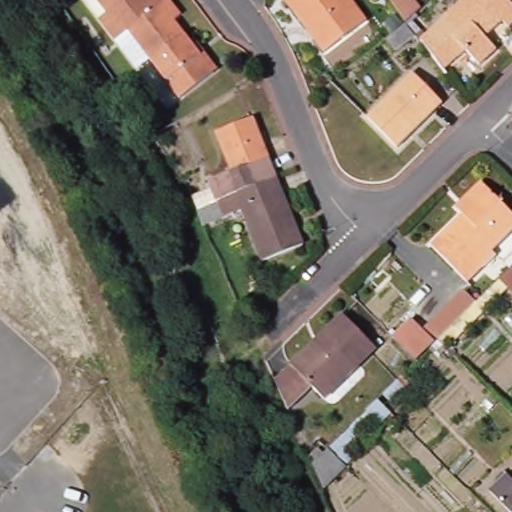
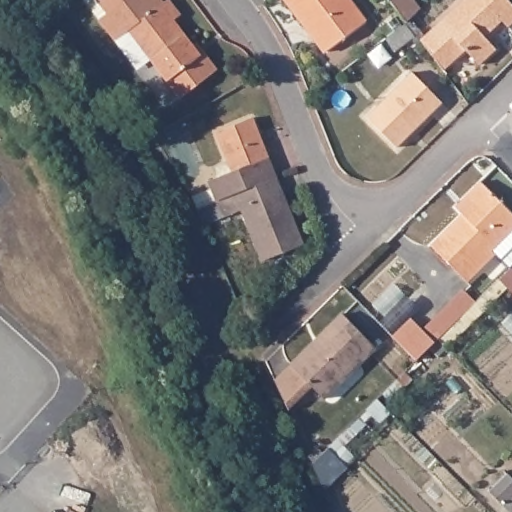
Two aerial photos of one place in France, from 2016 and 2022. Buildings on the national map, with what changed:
unchanged [(209,73),(175,99),(145,60),(132,70),(121,55),(111,41),(94,20),(79,0),(157,0),(159,2),(162,0),(164,0),(175,13),(176,15),(170,20),(189,45),(192,42),(212,70),(209,73)]
unchanged [(286,0),(349,0),(366,21),(326,52),(314,37),(287,2),(286,0)]
unchanged [(410,21),(394,0),(422,0),(426,5),(410,21)]
unchanged [(480,65),(468,54),(447,75),(421,40),(464,0),(508,0),(512,4),(512,24),(508,27),(502,21),(485,37),(497,50),(480,65)]
unchanged [(397,148),(367,117),(412,72),(442,103),(397,148)]
unchanged [(276,179),(217,201),(209,180),(232,171),(217,132),(252,118),(276,179)]
unchanged [(512,238),(506,244),(495,233),(482,245),(486,250),(462,272),(457,277),(421,240),(426,235),(452,209),(445,202),(452,195),(471,176),(512,218),(512,238)]
unchanged [(303,245),(263,261),(242,210),(224,218),(217,201),(276,179),(303,245)]
unchanged [(512,303),(493,285),(505,274),(512,281),(512,303)]
unchanged [(427,335),(407,355),(382,332),(402,313),(412,325),(453,284),(466,297),(427,335)]
unchanged [(323,399),(312,387),(288,410),(275,380),(343,313),(376,347),(323,399)]
unchanged [(391,401),(383,393),(405,372),(412,380),(391,401)]
unchanged [(318,489),(307,463),(322,448),(342,466),(318,489)]
unchanged [(507,475),(512,480),(512,512),(510,512),(490,491),(507,475)]

